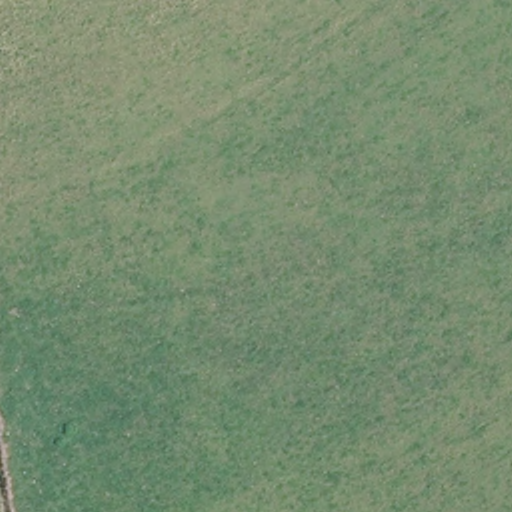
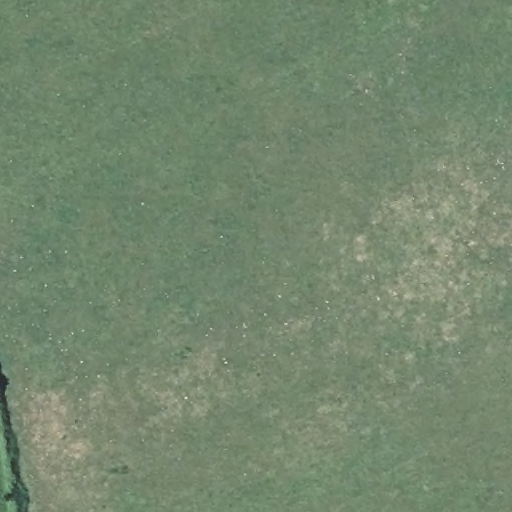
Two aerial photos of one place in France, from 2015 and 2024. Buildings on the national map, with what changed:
[]

